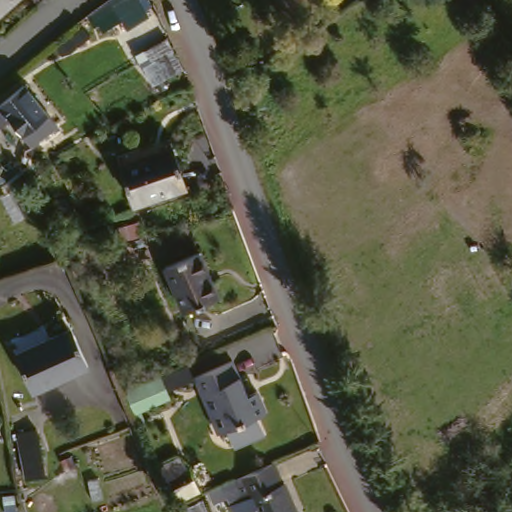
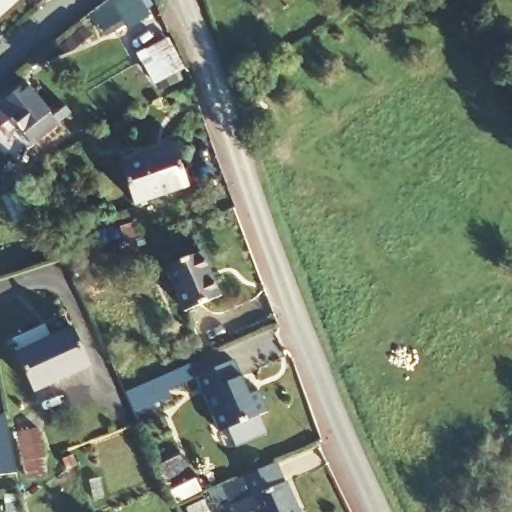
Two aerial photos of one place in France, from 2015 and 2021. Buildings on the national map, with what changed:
unchanged [(0,14),(0,0),(19,0),(0,14)]
unchanged [(126,28),(122,19),(103,30),(98,22),(93,25),(86,13),(107,0),(142,0),(151,14),(126,28)]
unchanged [(153,86),(137,54),(169,37),(185,71),(153,86)]
unchanged [(62,121),(38,140),(8,105),(31,84),(62,121)]
unchanged [(174,137),(193,185),(139,205),(121,160),(174,137)]
unchanged [(223,298),(190,310),(172,261),(204,248),(223,298)]
unchanged [(76,325),(91,363),(37,386),(21,350),(76,325)]
unchanged [(249,374),(257,388),(264,386),(274,407),(266,412),(274,428),(244,442),(236,428),(231,430),(204,373),(239,355),(248,374),(249,374)]
unchanged [(167,373),(176,396),(148,408),(138,385),(167,373)]
new [(2,412),(14,471),(0,474),(0,413),(2,412)]
unchanged [(36,480),(24,429),(44,423),(54,475),(36,480)]
unchanged [(310,512),(267,512),(256,491),(243,497),(235,480),(281,462),(287,476),(291,474),(310,512)]

